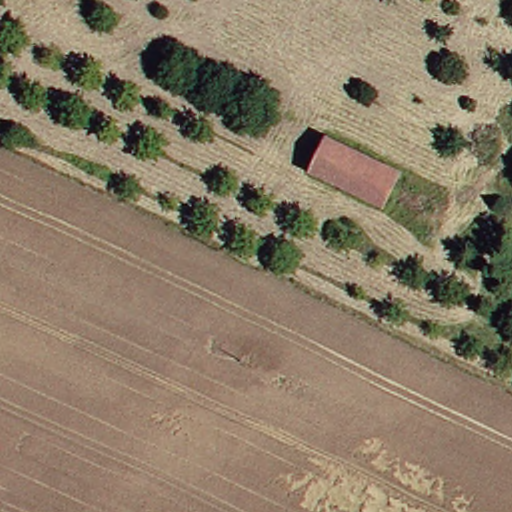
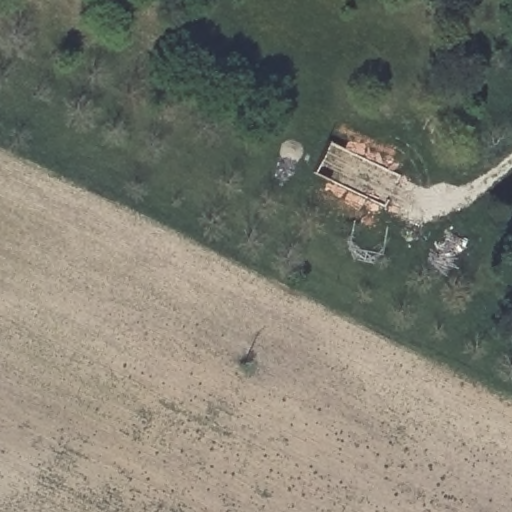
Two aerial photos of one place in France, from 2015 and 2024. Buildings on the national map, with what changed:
unchanged [(317,139),(388,171),(373,203),(303,170),(317,139)]

